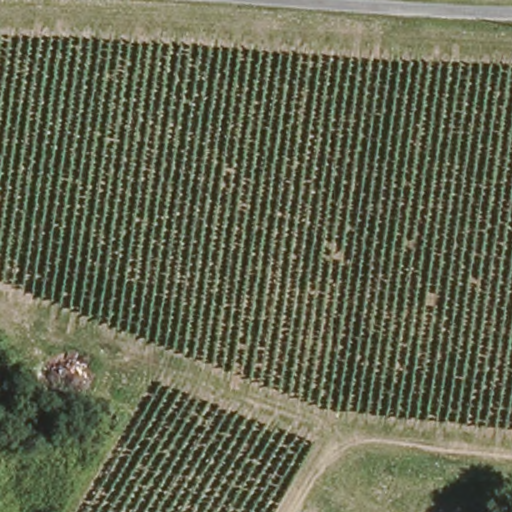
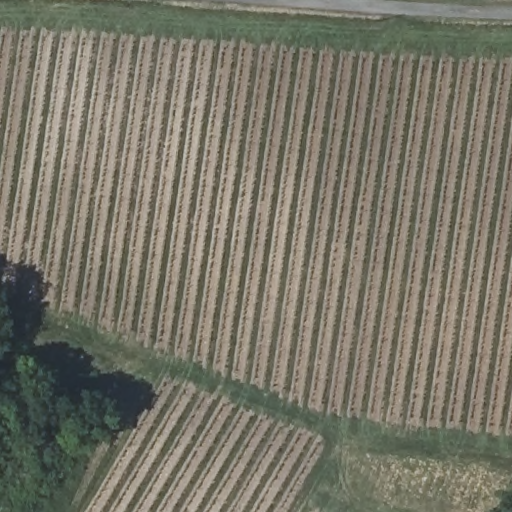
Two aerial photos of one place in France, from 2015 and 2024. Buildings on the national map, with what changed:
[]

